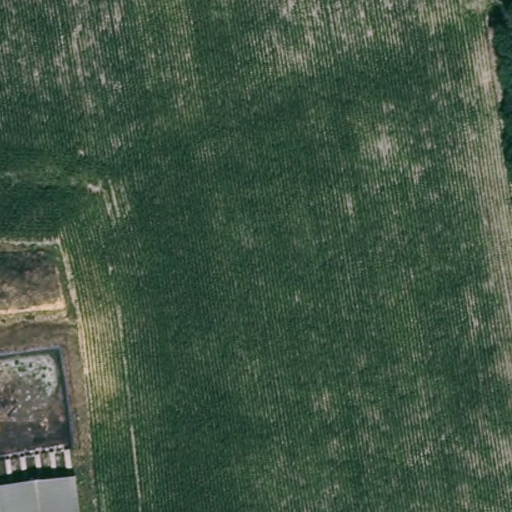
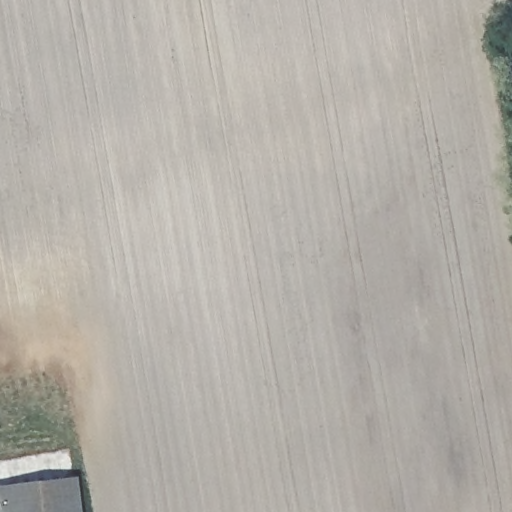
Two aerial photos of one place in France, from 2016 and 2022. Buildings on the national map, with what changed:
unchanged [(81,512),(0,512),(0,487),(77,476),(81,512)]

